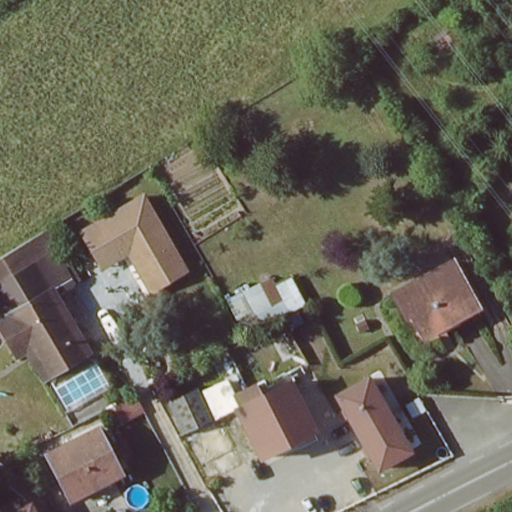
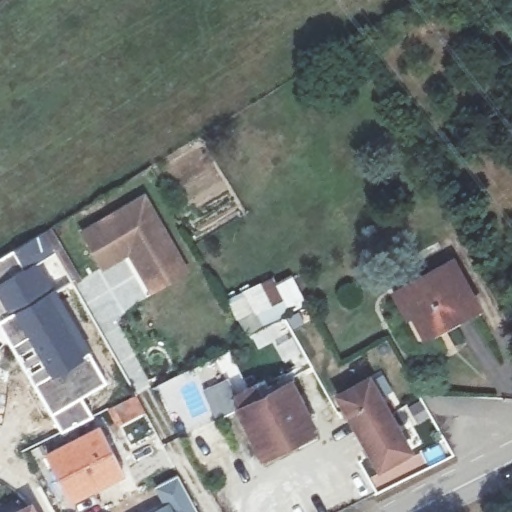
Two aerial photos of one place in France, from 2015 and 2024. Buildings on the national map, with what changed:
unchanged [(153,295),(128,257),(102,275),(79,234),(148,192),(191,268),(153,295)]
unchanged [(27,350),(17,356),(12,346),(0,326),(0,315),(8,310),(0,295),(0,279),(54,250),(72,284),(57,291),(91,351),(52,370),(41,376),(27,350)]
unchanged [(453,265),(476,308),(424,338),(411,320),(404,323),(390,299),(453,265)]
unchanged [(247,338),(228,300),(257,285),(263,290),(295,274),(309,302),(247,338)]
unchanged [(412,452),(376,472),(332,395),(369,374),(412,452)]
unchanged [(235,395),(290,375),(319,435),(259,465),(234,412),(235,395)]
unchanged [(234,412),(179,436),(161,402),(195,385),(197,391),(228,380),(235,395),(234,412)]
unchanged [(98,431),(120,472),(75,498),(49,456),(98,431)]
new [(154,486),(178,473),(198,512),(149,512),(163,505),(154,486)]
unchanged [(32,512),(14,512),(28,505),(32,512)]

